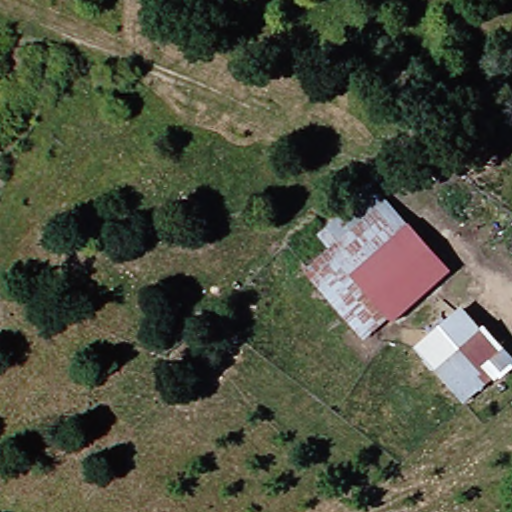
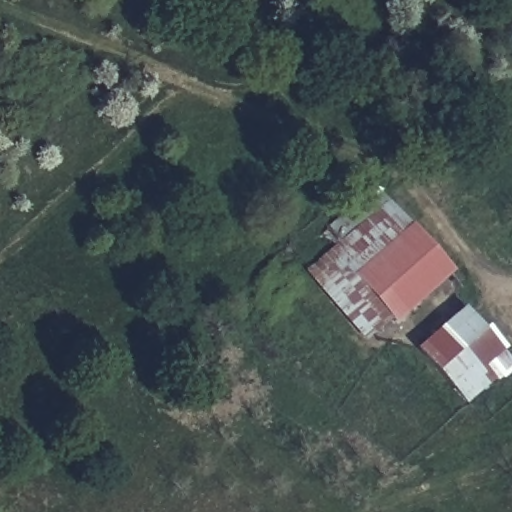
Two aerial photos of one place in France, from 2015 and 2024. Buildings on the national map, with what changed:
unchanged [(358,194),(394,235),(351,275),(388,315),(362,337),(289,252),(358,194)]
unchanged [(398,239),(429,276),(389,314),(388,315),(351,275),(394,235),(398,239)]
unchanged [(504,347),(512,356),(512,369),(499,379),(497,376),(467,401),(454,386),(415,342),(463,301),(504,347)]

